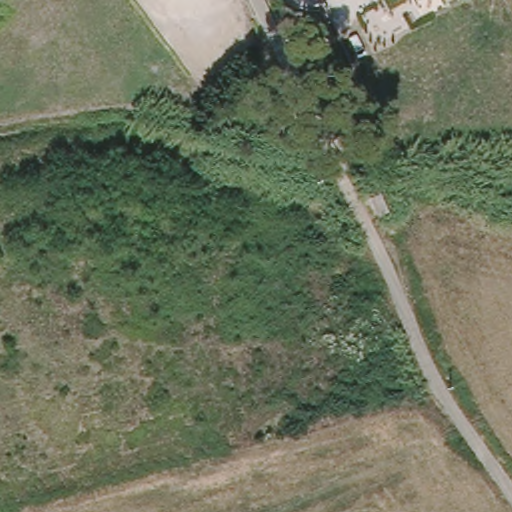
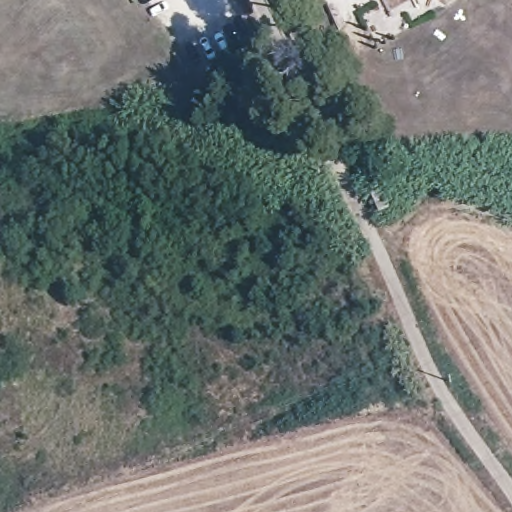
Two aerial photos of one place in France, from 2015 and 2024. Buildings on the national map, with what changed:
[]

